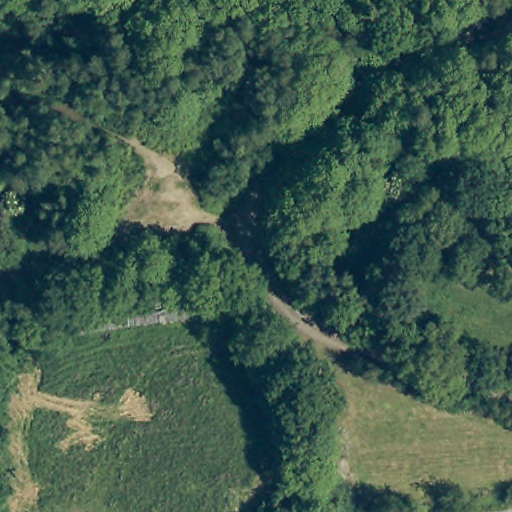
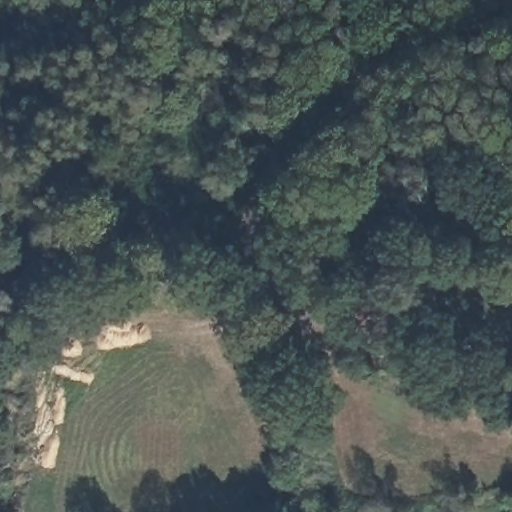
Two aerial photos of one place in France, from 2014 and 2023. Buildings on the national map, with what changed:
[]

